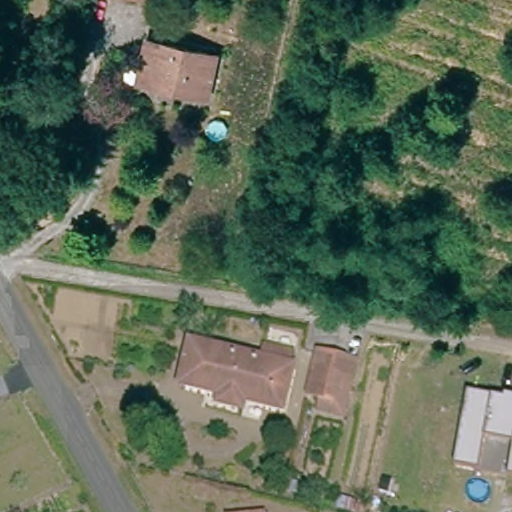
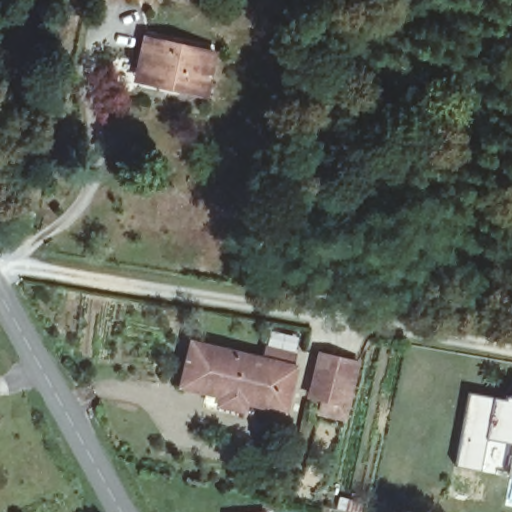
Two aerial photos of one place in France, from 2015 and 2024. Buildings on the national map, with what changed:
unchanged [(134,0),(158,0),(157,4),(134,0)]
unchanged [(142,50),(146,36),(214,51),(204,92),(182,86),(137,76),(142,50)]
unchanged [(281,406),(242,397),(240,405),(217,399),(219,390),(180,379),(190,338),(262,357),(265,346),(292,352),(288,365),(291,366),(281,406)]
unchanged [(355,361),(340,416),(316,410),(319,396),(307,393),(317,351),(355,361)]
unchanged [(468,392),(506,398),(507,394),(512,395),(512,443),(485,437),(480,468),(455,463),(468,392)]
unchanged [(511,476),(509,472),(512,456),(512,476),(511,476)]

